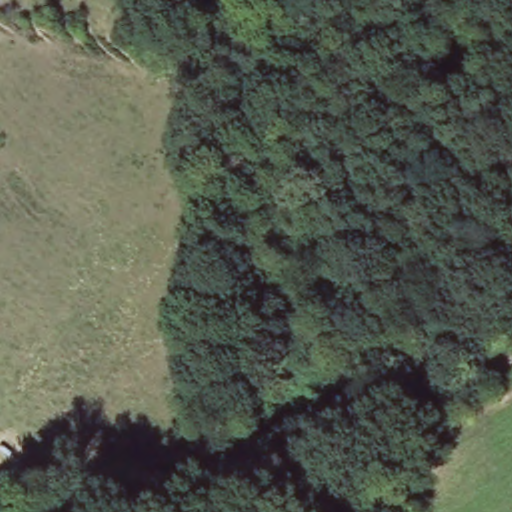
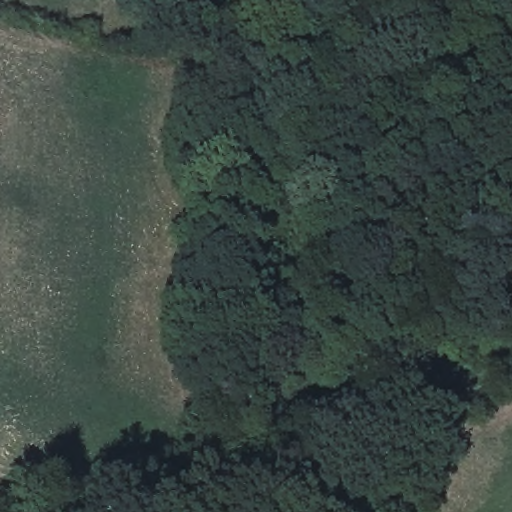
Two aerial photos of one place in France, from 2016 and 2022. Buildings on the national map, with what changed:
[]

